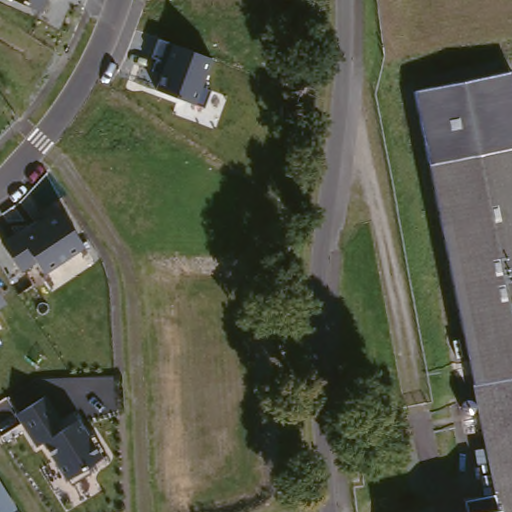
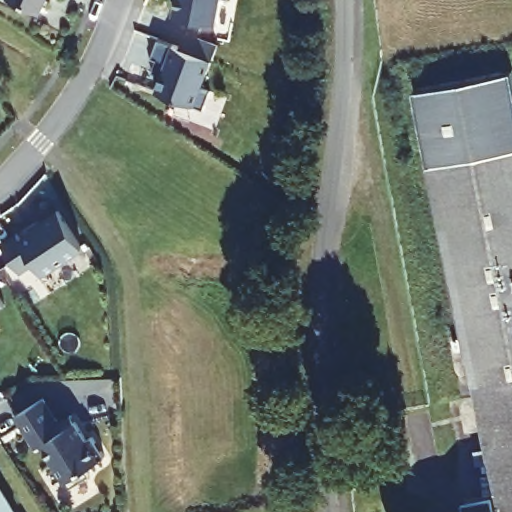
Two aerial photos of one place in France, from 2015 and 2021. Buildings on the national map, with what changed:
unchanged [(3,0),(46,0),(40,14),(3,0)]
new [(215,23),(174,16),(177,0),(219,0),(215,23)]
unchanged [(155,90),(160,76),(153,73),(158,59),(153,57),(158,40),(169,44),(212,59),(202,89),(210,92),(203,108),(155,90)]
unchanged [(507,75),(512,103),(512,108),(489,102),(438,89),(507,75)]
unchanged [(428,172),(413,94),(438,89),(489,102),(512,108),(512,373),(470,381),(428,172)]
unchanged [(36,261),(21,271),(1,243),(18,232),(22,235),(60,210),(85,247),(44,274),(36,261)]
unchanged [(0,308),(0,291),(9,302),(0,308)]
unchanged [(496,512),(470,381),(512,373),(512,512),(496,512)]
unchanged [(44,397),(58,420),(75,409),(106,459),(66,482),(42,445),(35,448),(13,413),(44,397)]
unchanged [(13,512),(0,512),(0,482),(16,510),(13,512)]

